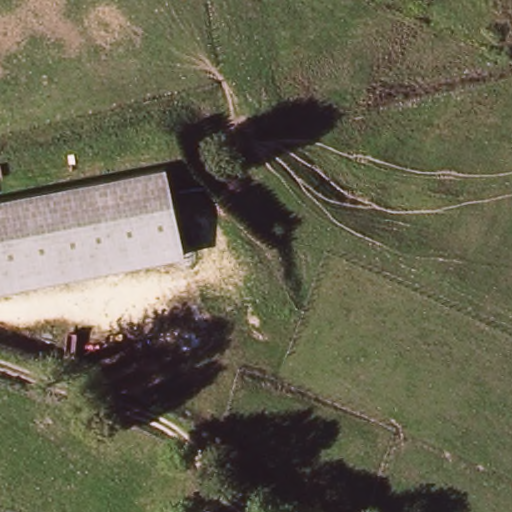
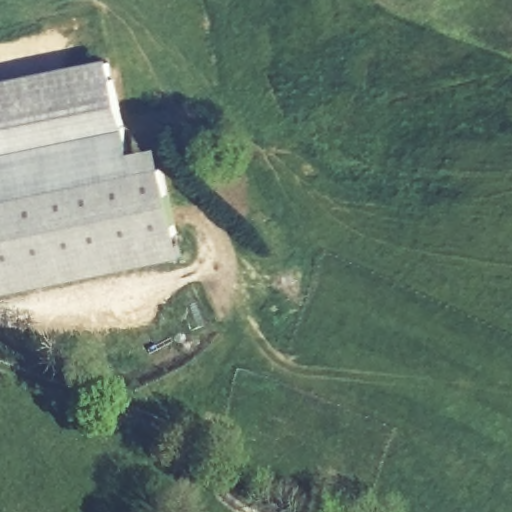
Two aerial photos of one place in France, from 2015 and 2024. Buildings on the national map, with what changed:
new [(127,126),(0,153),(0,79),(112,56),(127,126)]
new [(131,151),(156,146),(159,165),(0,197),(0,153),(124,126),(131,151)]
unchanged [(173,234),(0,269),(0,197),(159,165),(173,234)]
unchanged [(177,255),(0,290),(0,269),(173,234),(177,255)]

